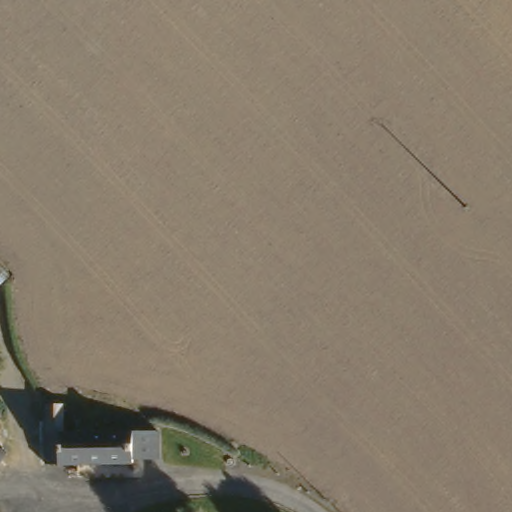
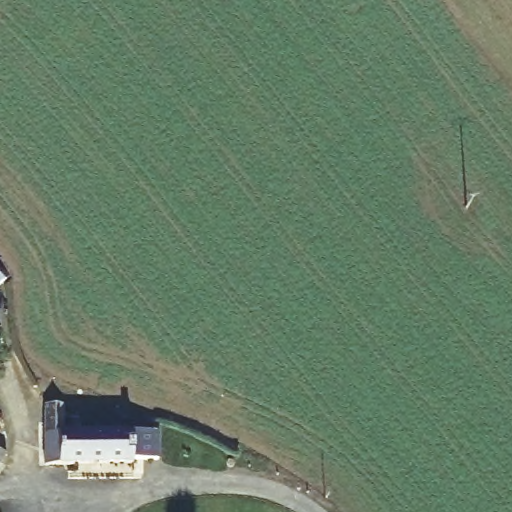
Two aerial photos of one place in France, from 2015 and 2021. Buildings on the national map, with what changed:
unchanged [(5,278),(0,283),(0,273),(5,278)]
unchanged [(164,427),(164,455),(132,458),(132,462),(44,467),(44,463),(43,435),(42,420),(42,407),(61,406),(61,417),(62,435),(99,432),(164,427)]
unchanged [(1,463),(0,464),(0,459),(1,463)]

